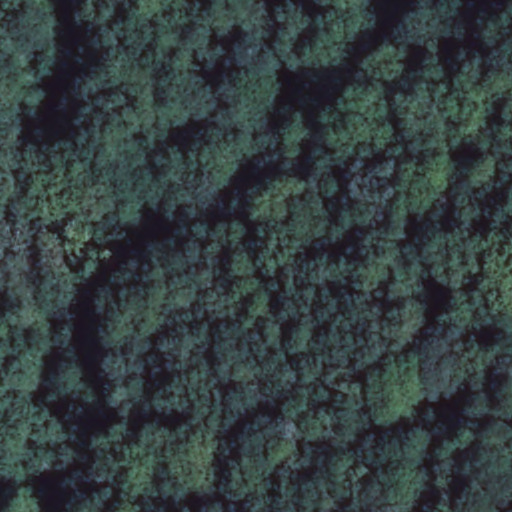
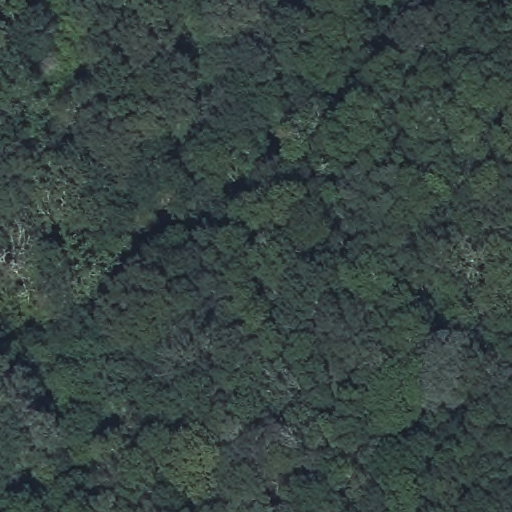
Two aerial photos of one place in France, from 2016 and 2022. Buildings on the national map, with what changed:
[]

